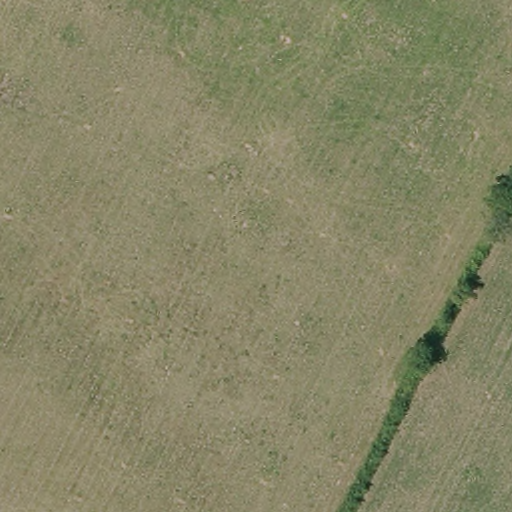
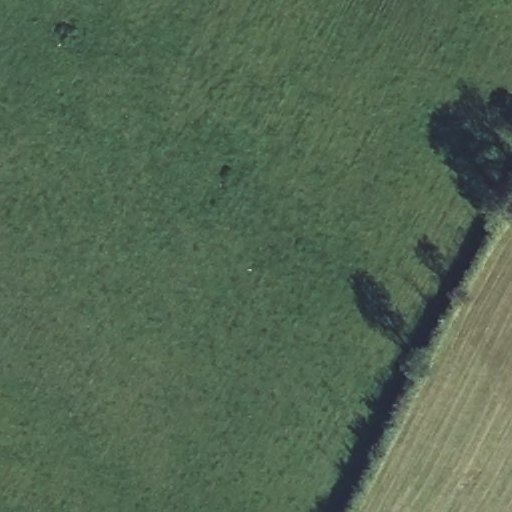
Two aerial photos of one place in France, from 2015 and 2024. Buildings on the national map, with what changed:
[]

